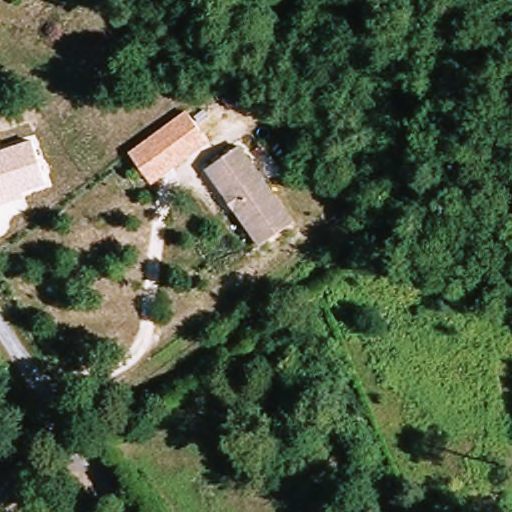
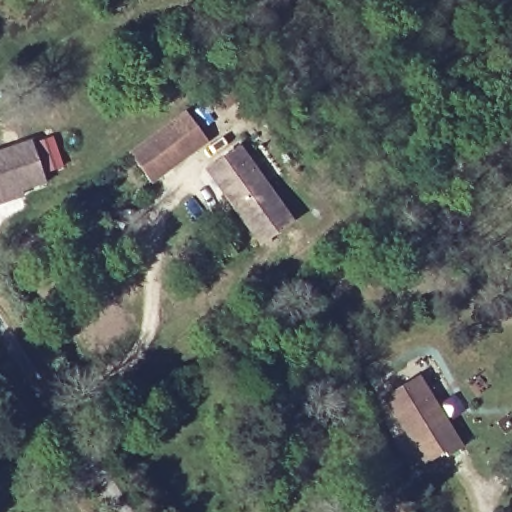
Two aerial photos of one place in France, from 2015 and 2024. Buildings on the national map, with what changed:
unchanged [(209,142),(153,184),(130,153),(186,111),(209,142)]
unchanged [(23,191),(24,196),(0,204),(0,150),(33,139),(48,183),(23,191)]
unchanged [(293,219),(262,242),(207,167),(238,144),(293,219)]
new [(448,457),(444,452),(424,466),(407,436),(403,439),(396,430),(399,427),(383,398),(421,374),(463,446),(448,457)]

